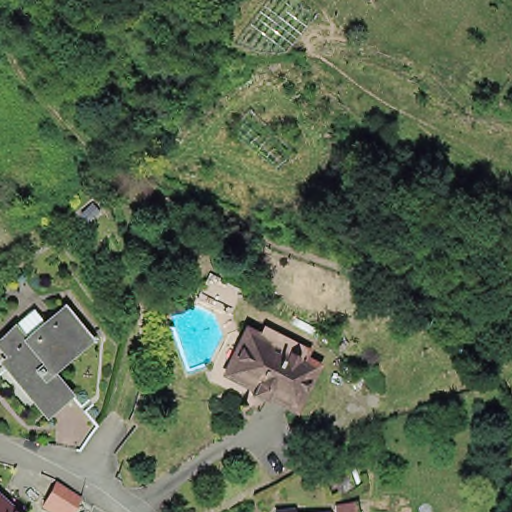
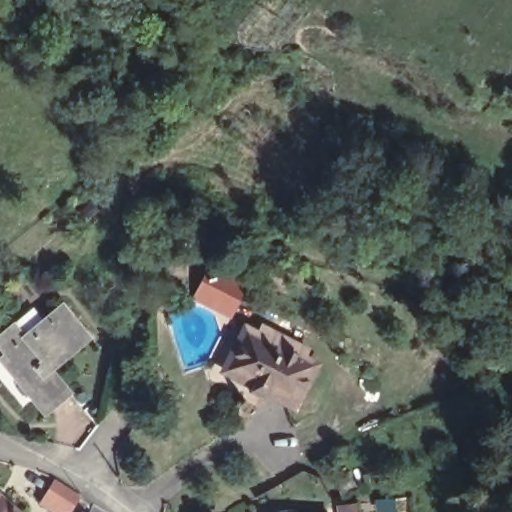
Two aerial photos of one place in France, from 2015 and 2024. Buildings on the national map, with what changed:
unchanged [(95,339),(57,371),(74,391),(47,413),(6,363),(10,360),(0,349),(0,342),(19,326),(36,312),(47,324),(67,307),(95,339)]
unchanged [(254,334),(257,327),(280,339),(280,338),(305,351),(302,357),(301,359),(315,366),(305,384),(297,386),(286,408),(262,396),(259,400),(245,393),(247,388),(222,376),(235,351),(234,344),(242,328),(254,334)]
unchanged [(349,473),(357,489),(342,497),(334,481),(349,473)]
unchanged [(57,481),(80,497),(81,498),(72,512),(54,512),(42,504),(57,481)]
unchanged [(14,512),(0,512),(0,500),(14,512)]
unchanged [(358,507),(359,512),(339,512),(339,509),(358,507)]

